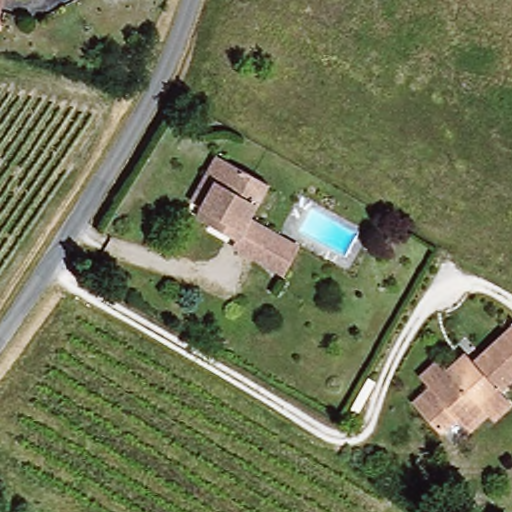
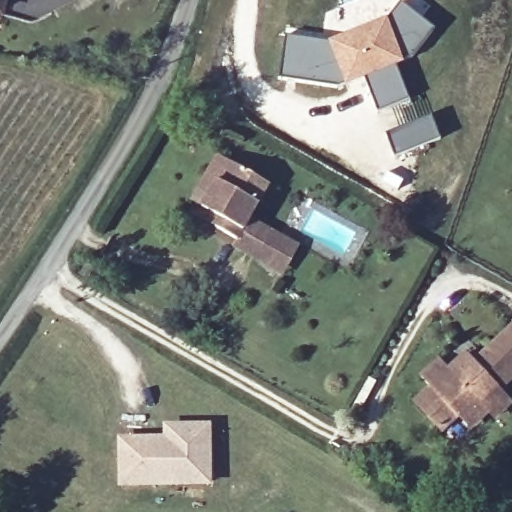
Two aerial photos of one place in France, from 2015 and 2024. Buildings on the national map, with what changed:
new [(285,35),(332,43),(386,23),(402,5),(435,32),(413,60),(395,66),(410,102),(376,115),(363,79),(337,88),(279,78),(285,35)]
new [(434,118),(443,141),(396,159),(387,135),(434,118)]
unchanged [(256,262),(232,249),(232,241),(211,230),(191,219),(199,205),(204,194),(194,190),(201,176),(214,152),(267,185),(247,220),(270,232),(273,239),(282,244),(297,252),(283,277),(256,262)]
unchanged [(481,400),(488,410),(465,429),(452,415),(438,425),(418,399),(431,390),(420,377),(437,361),(445,367),(465,352),(470,358),(512,325),(512,377),(481,400)]
new [(123,485),(122,441),(167,440),(167,428),(209,428),(210,485),(172,485),(146,485),(123,485)]

